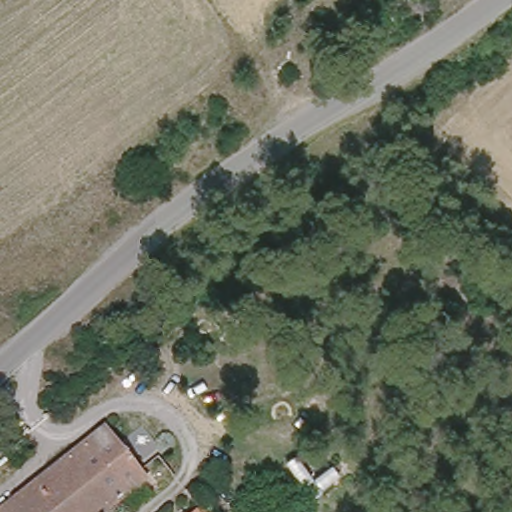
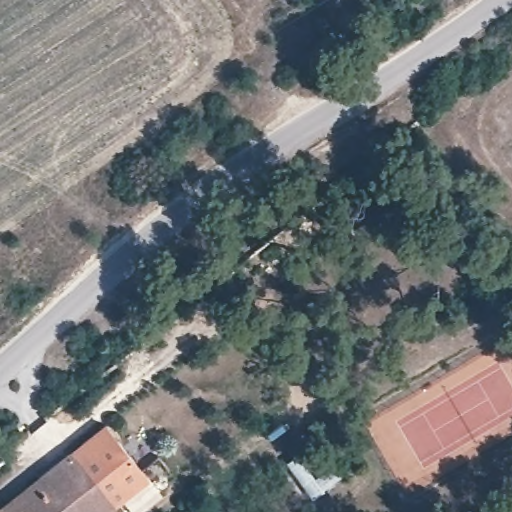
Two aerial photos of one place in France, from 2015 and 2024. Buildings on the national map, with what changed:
unchanged [(103,423),(148,478),(105,512),(65,512),(37,476),(103,423)]
unchanged [(37,476),(65,512),(0,512),(0,505),(37,476)]
unchanged [(194,512),(195,511),(195,512),(194,512)]

